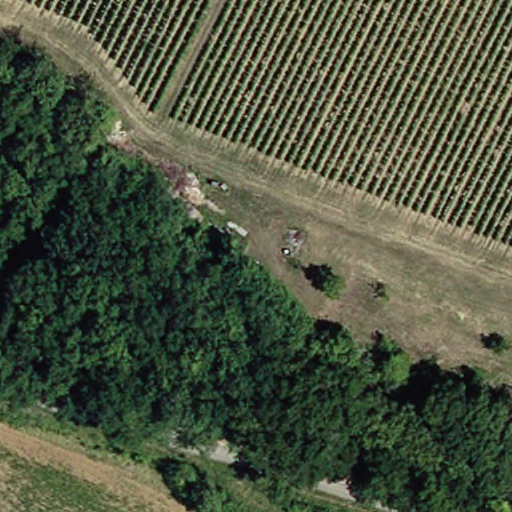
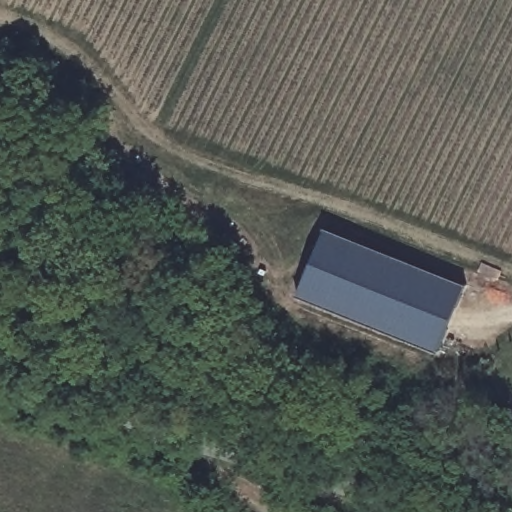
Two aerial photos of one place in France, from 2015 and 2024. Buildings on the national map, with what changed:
new [(324,226),(464,284),(436,350),(297,292),(324,226)]
new [(506,416),(512,399),(512,418),(506,416)]

